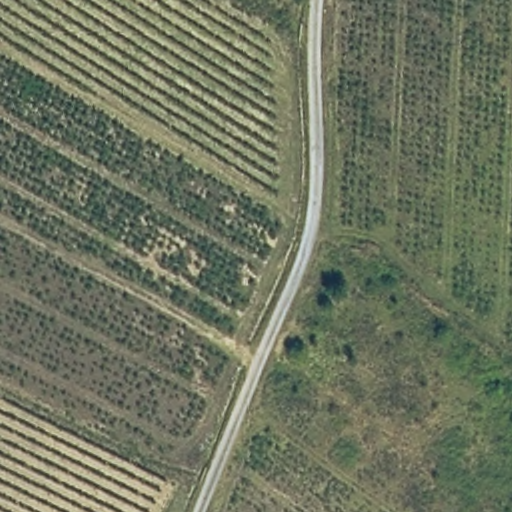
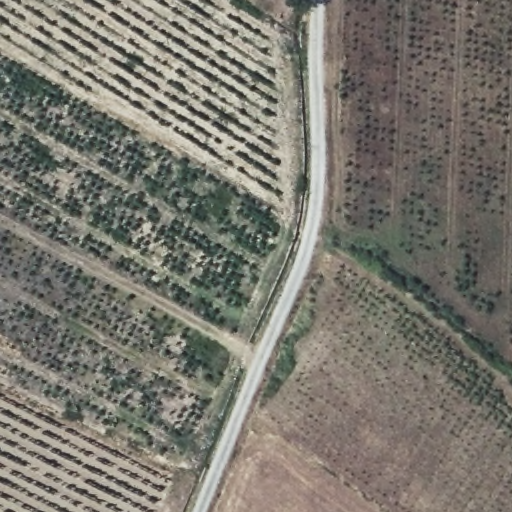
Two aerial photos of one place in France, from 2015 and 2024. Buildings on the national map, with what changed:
[]

